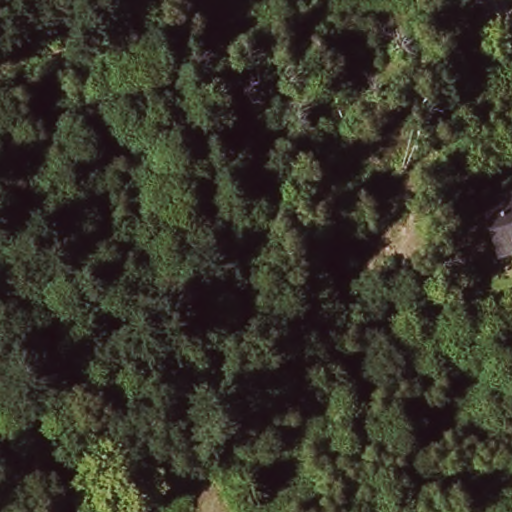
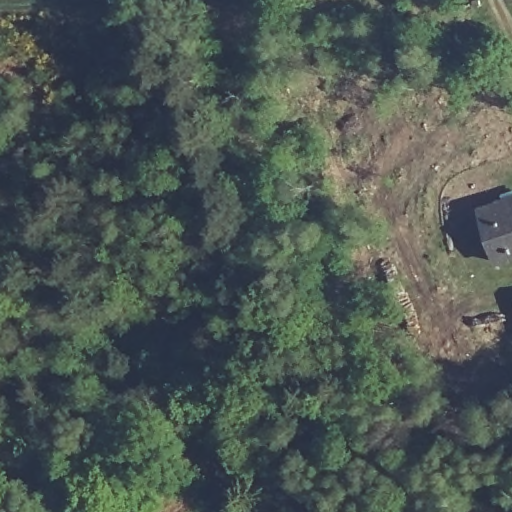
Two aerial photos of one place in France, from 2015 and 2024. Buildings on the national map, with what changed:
new [(496,266),(478,208),(512,196),(512,260),(496,266)]
demolished [(488,209),(512,202),(512,255),(501,258),(488,209)]
new [(511,301),(512,300),(512,303),(511,301)]

